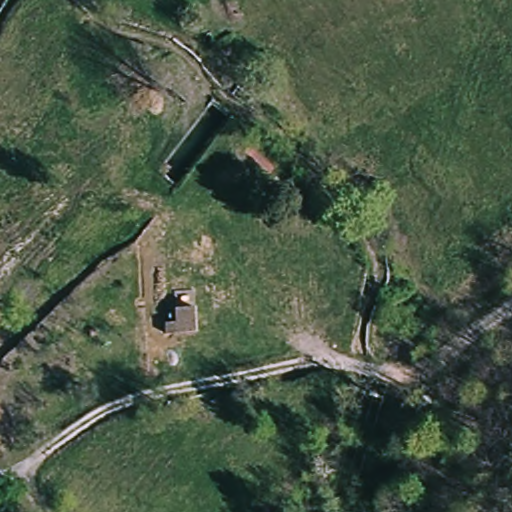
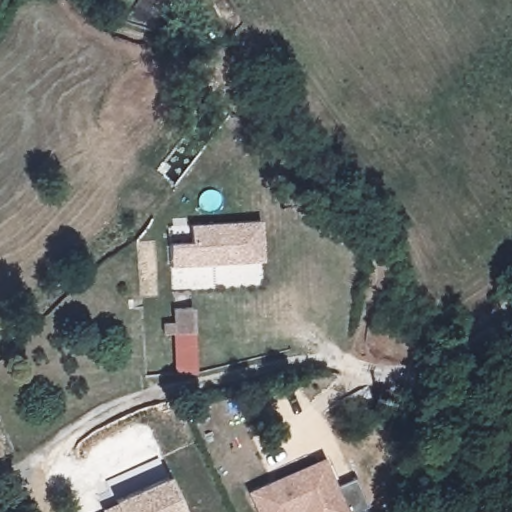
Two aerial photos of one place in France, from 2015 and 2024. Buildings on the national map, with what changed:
new [(192,241),(190,224),(261,219),(265,261),(171,267),(170,242),(192,241)]
unchanged [(176,306),(194,305),(195,330),(168,332),(168,321),(177,320),(176,306)]
new [(197,375),(176,375),(173,331),(195,330),(197,375)]
new [(328,474),(334,487),(355,478),(368,507),(357,512),(257,512),(249,492),(290,474),(322,460),(328,474)]
new [(117,504),(115,501),(167,478),(181,512),(104,512),(103,510),(117,504)]

